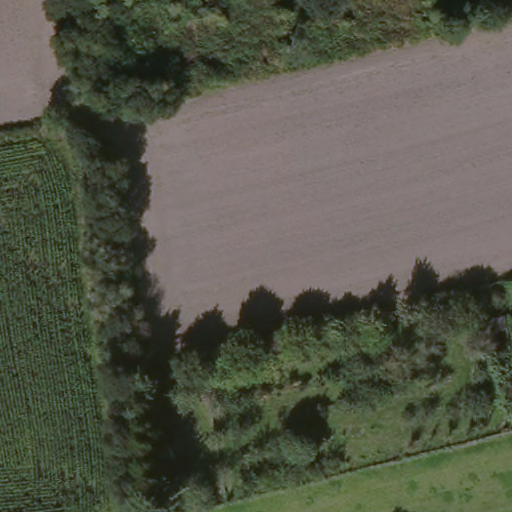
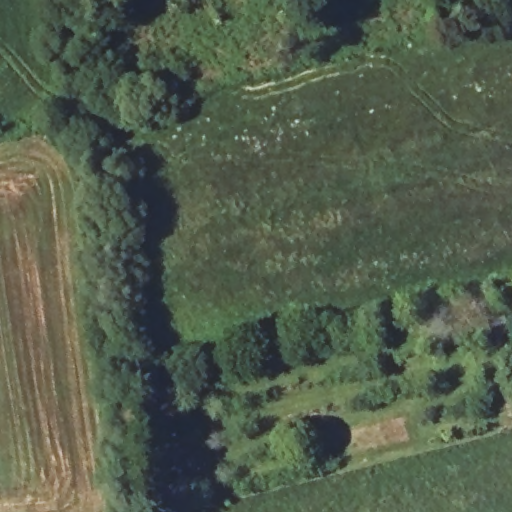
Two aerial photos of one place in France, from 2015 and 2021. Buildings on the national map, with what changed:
[]

